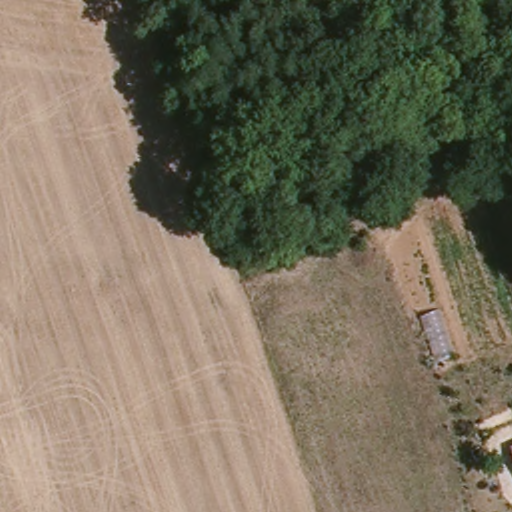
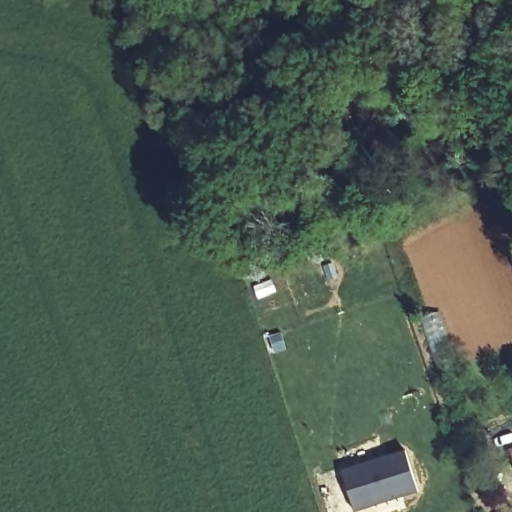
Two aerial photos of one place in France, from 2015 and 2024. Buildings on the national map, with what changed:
unchanged [(512,447),(512,454),(510,448),(512,447)]
new [(405,451),(418,492),(355,512),(342,472),(405,451)]

